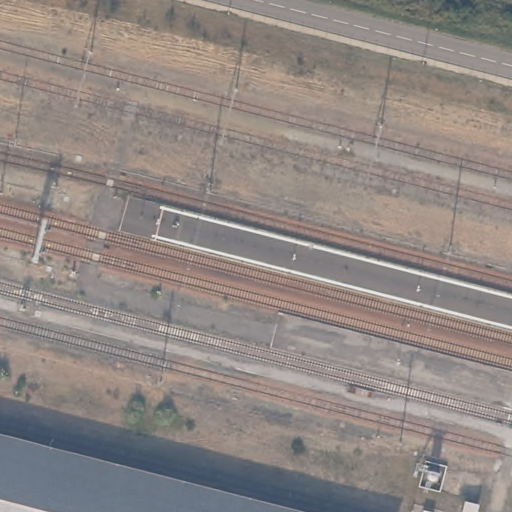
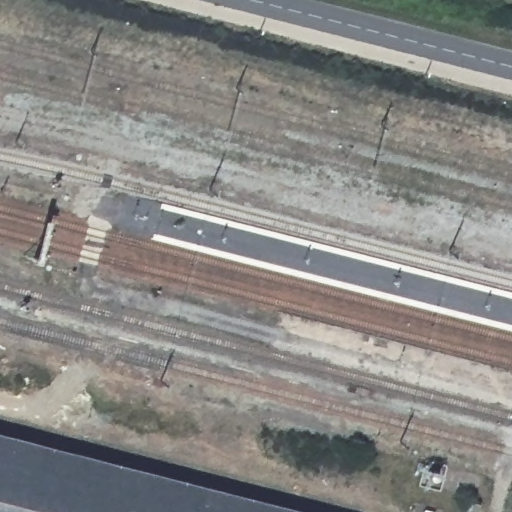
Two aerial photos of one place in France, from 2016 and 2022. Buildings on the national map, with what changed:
unchanged [(322,512),(0,512),(0,430),(322,512)]

